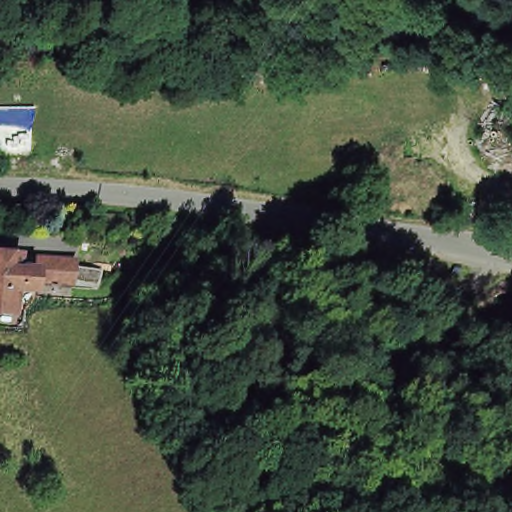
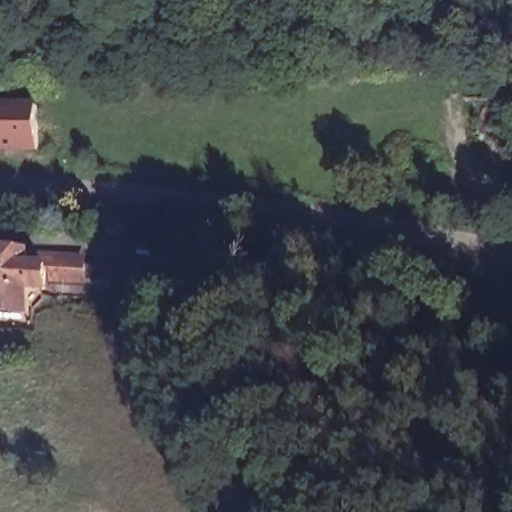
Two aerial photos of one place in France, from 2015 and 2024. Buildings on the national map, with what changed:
new [(38,152),(0,152),(0,102),(38,102),(38,152)]
unchanged [(105,288),(45,280),(48,255),(108,264),(105,288)]
unchanged [(20,291),(0,289),(0,259),(23,260),(22,271),(38,271),(37,294),(20,293),(20,291)]
unchanged [(19,317),(0,316),(0,289),(20,291),(20,293),(19,317)]

